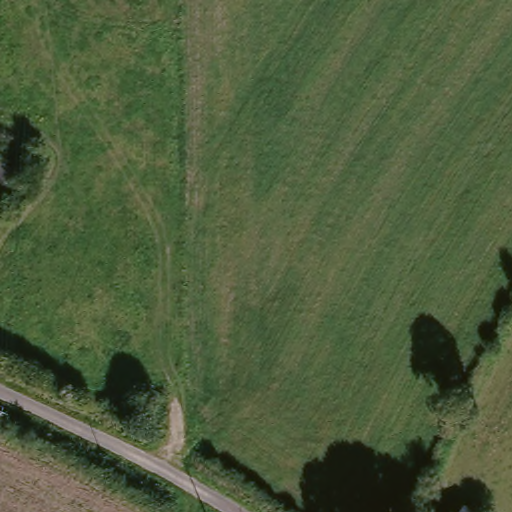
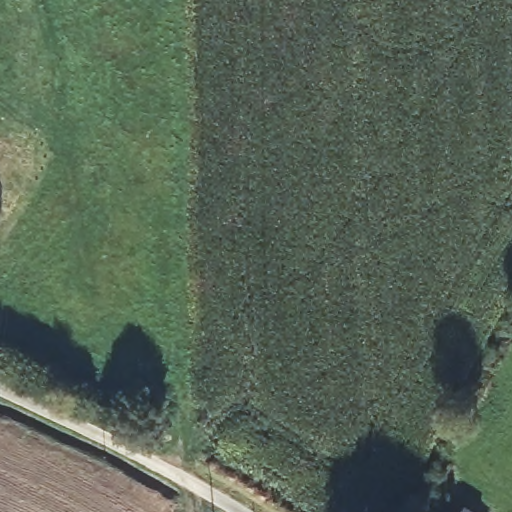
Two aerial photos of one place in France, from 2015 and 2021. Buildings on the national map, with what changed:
unchanged [(11,165),(1,185),(0,185),(0,160),(11,165)]
unchanged [(478,512),(456,512),(461,503),(478,512)]
unchanged [(449,512),(448,512),(448,511),(449,512)]

